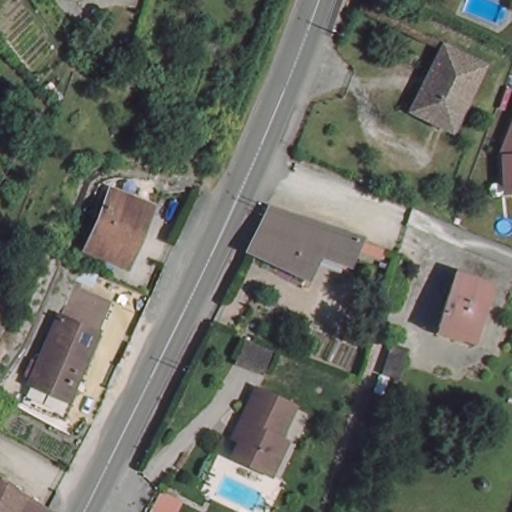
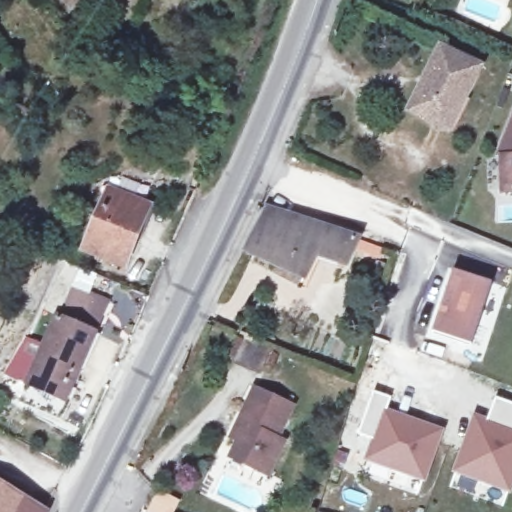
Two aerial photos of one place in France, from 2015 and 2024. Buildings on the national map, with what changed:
unchanged [(411,108),(411,102),(417,90),(438,41),(477,59),(449,124),(416,110),(411,108)]
unchanged [(495,155),(512,112),(512,195),(499,195),(495,155)]
unchanged [(143,206),(131,234),(139,239),(119,281),(77,260),(108,188),(143,206)]
unchanged [(351,241),(343,267),(314,258),(301,281),(243,252),(266,209),(351,241)]
unchanged [(493,283),(476,340),(436,328),(454,271),(493,283)]
unchanged [(90,328),(59,394),(22,376),(53,311),(90,328)]
demolished [(382,376),(389,354),(392,344),(408,349),(405,358),(398,381),(382,376)]
unchanged [(291,404),(278,435),(283,438),(267,470),(231,453),(241,430),(233,427),(253,386),(291,404)]
new [(423,482),(363,458),(371,437),(357,433),(374,392),(389,397),(384,407),(443,428),(423,482)]
new [(510,493),(452,471),(474,412),(488,417),(496,397),(512,403),(512,488),(510,493)]
unchanged [(39,512),(0,512),(0,482),(41,507),(39,512)]

